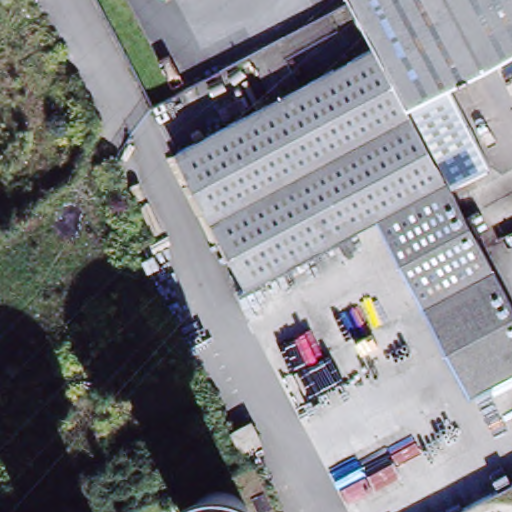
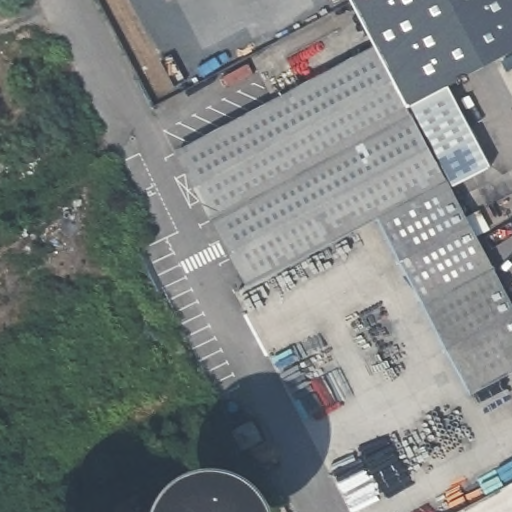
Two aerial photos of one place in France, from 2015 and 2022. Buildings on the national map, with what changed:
unchanged [(446,89),(409,109),(376,48),(358,12),(353,4),(351,0),(512,0),(512,54),(446,89)]
unchanged [(246,288),(175,154),(376,48),(409,109),(450,188),(512,301),(512,382),(467,400),(379,228),(246,288)]
unchanged [(446,89),(488,168),(450,188),(409,109),(446,89)]
unchanged [(234,431),(252,421),(261,438),(243,447),(234,431)]

